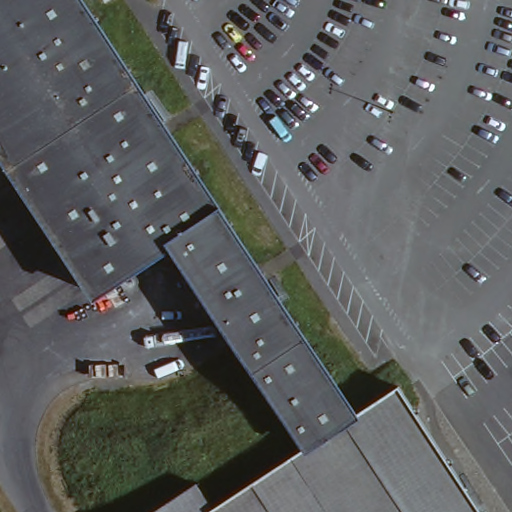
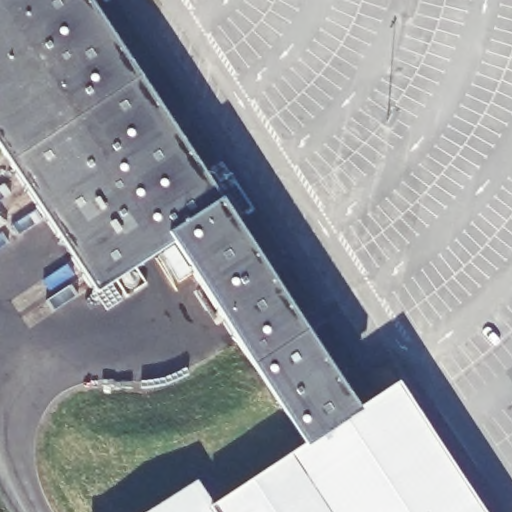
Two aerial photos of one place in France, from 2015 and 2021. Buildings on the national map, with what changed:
unchanged [(401,384),(489,512),(213,512),(212,511),(308,446),(173,243),(96,295),(0,151),(0,0),(75,0),(358,413),(401,384)]
unchanged [(198,484),(212,511),(213,512),(155,512),(198,484)]

